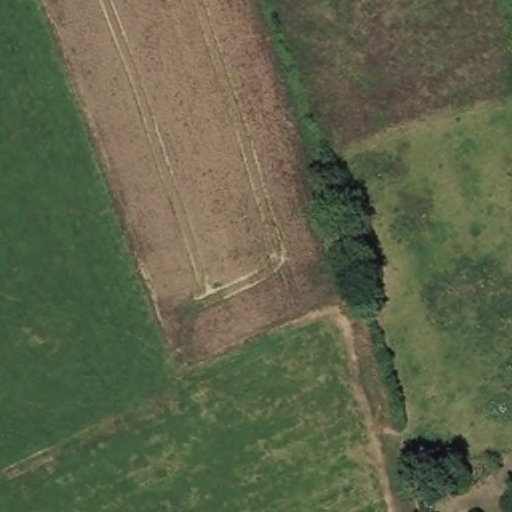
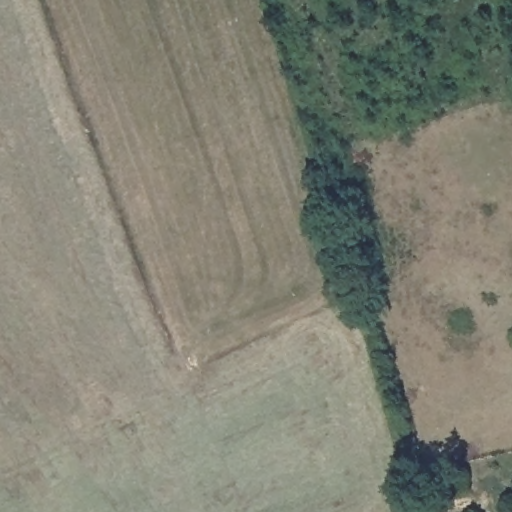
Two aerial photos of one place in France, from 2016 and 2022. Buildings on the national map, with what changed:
[]

